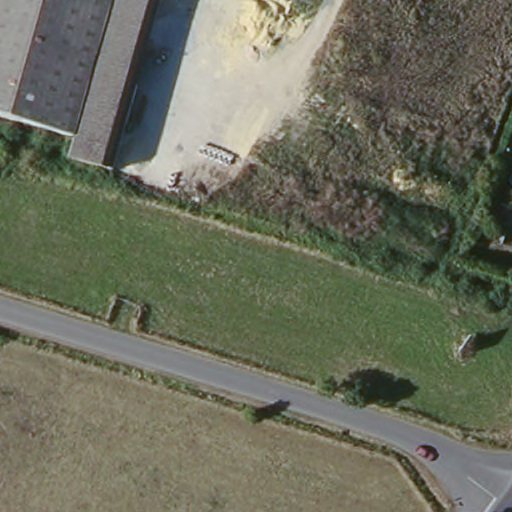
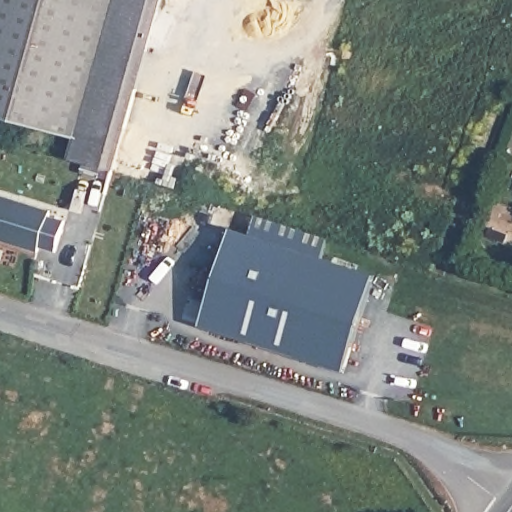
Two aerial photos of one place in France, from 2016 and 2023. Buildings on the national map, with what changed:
unchanged [(115,173),(68,159),(74,137),(0,115),(0,0),(163,0),(115,173)]
new [(50,211),(49,216),(65,221),(55,252),(39,247),(38,252),(0,240),(0,195),(50,211)]
new [(230,230),(375,277),(344,372),(199,325),(230,230)]

